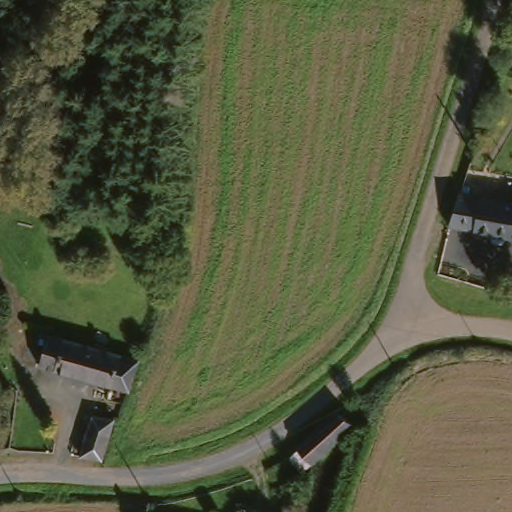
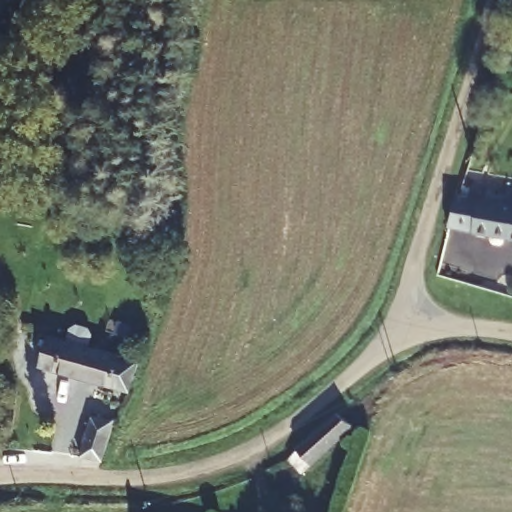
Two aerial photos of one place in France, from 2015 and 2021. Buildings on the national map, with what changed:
unchanged [(453,197),(452,192),(512,202),(512,208),(453,197)]
unchanged [(450,231),(453,197),(512,208),(512,241),(450,231)]
unchanged [(38,368),(46,336),(137,355),(125,391),(38,368)]
unchanged [(298,453),(337,421),(352,438),(313,471),(298,453)]
unchanged [(80,463),(87,422),(108,425),(107,433),(101,467),(80,463)]

